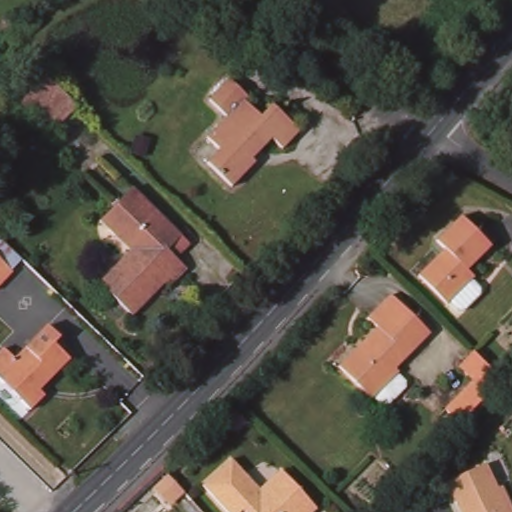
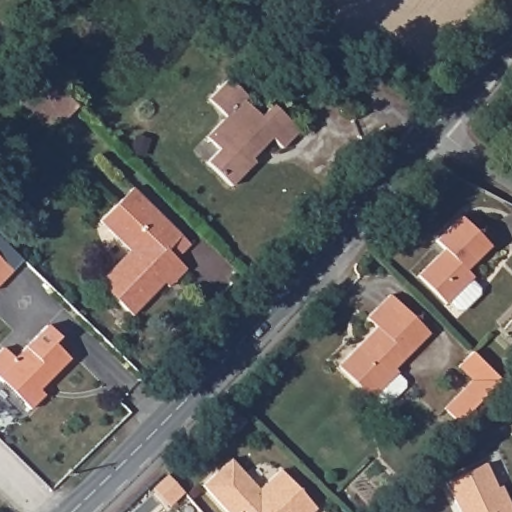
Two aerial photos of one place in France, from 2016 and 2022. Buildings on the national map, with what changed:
unchanged [(40,77),(71,107),(54,125),(45,133),(15,104),(23,95),(40,77)]
unchanged [(253,162),(231,186),(206,163),(220,149),(207,138),(227,117),(209,102),(229,81),(247,97),(243,102),(260,117),(272,105),(298,130),(282,147),(272,137),(260,151),(251,160),(253,162)]
unchanged [(129,321),(95,287),(125,255),(95,227),(112,208),(126,192),(177,241),(184,249),(170,262),(178,270),(129,321)]
unchanged [(439,250),(430,242),(454,217),(484,247),(461,271),(468,278),(441,305),(413,277),(439,250)]
unchanged [(22,264),(11,276),(0,288),(0,243),(22,264)]
unchanged [(372,327),(363,318),(385,296),(424,334),(390,369),(393,373),(367,400),(333,367),(372,327)]
unchanged [(4,353),(14,364),(47,331),(60,343),(54,350),(69,365),(39,396),(44,401),(30,413),(0,383),(0,357),(4,353)]
unchanged [(458,374),(453,368),(468,352),(474,358),(501,385),(457,430),(443,416),(471,387),(458,374)]
unchanged [(264,493),(285,474),(321,512),(228,512),(207,490),(235,463),(264,493)]
unchanged [(490,463),(502,488),(506,486),(512,498),(512,512),(464,512),(449,481),(490,463)]

